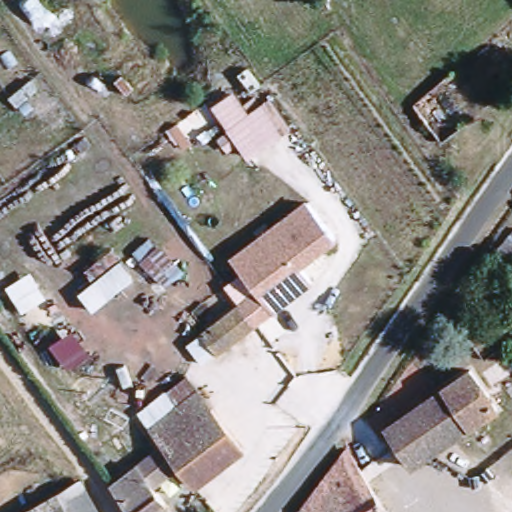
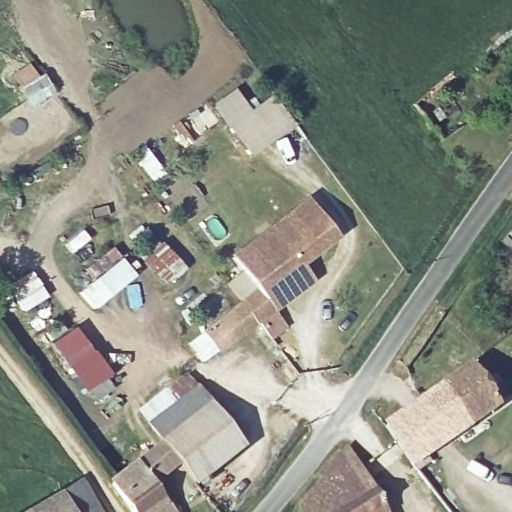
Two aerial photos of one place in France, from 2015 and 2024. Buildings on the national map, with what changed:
unchanged [(293,126),(250,156),(213,103),(234,88),(249,110),(271,94),(293,126)]
unchanged [(214,347),(200,356),(188,340),(202,330),(241,302),(227,284),(243,272),(230,254),(305,197),(338,239),(303,265),(315,284),(220,356),(214,347)]
unchanged [(187,267),(167,287),(133,252),(153,233),(187,267)]
unchanged [(94,280),(84,268),(112,245),(135,275),(94,309),(80,291),(94,280)]
new [(110,376),(86,394),(51,344),(75,327),(110,376)]
unchanged [(463,366),(489,404),(409,461),(382,424),(463,366)]
unchanged [(154,424),(141,408),(187,374),(201,391),(154,424)]
unchanged [(154,424),(201,391),(214,406),(168,441),(154,424)]
unchanged [(244,444),(198,479),(168,441),(214,406),(244,444)]
unchanged [(171,467),(152,483),(178,512),(133,512),(109,479),(156,446),(171,467)]
unchanged [(349,458),(388,512),(310,512),(349,458)]
unchanged [(67,484),(87,512),(22,512),(67,484)]

